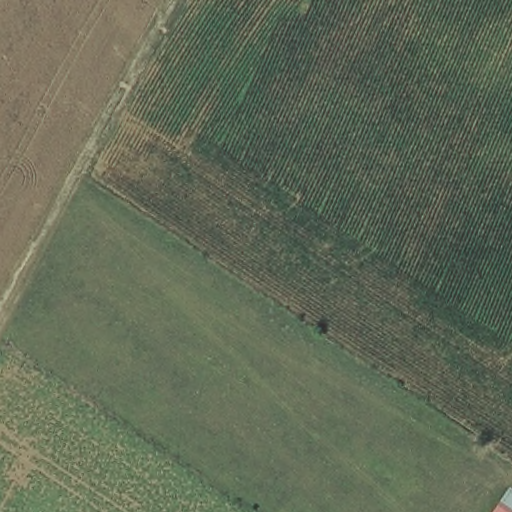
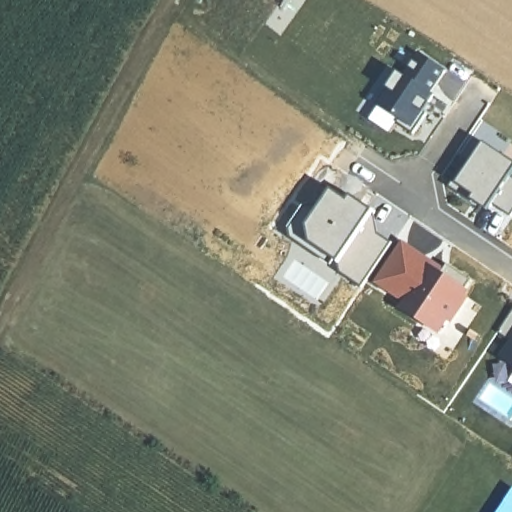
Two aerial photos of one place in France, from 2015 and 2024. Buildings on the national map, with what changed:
new [(397,69),(415,50),(448,69),(433,96),(435,98),(411,135),(396,124),(390,134),(367,119),(397,69)]
new [(512,161),(512,172),(510,177),(512,178),(512,212),(511,214),(491,202),(490,205),(474,197),(471,201),(451,187),(481,143),(512,161)]
new [(302,225),(332,186),(375,212),(371,218),(335,267),(292,234),(302,225)]
new [(371,218),(385,229),(382,232),(393,241),(360,287),(335,267),(371,218)]
new [(400,239),(428,257),(471,289),(450,324),(447,322),(438,335),(396,307),(399,302),(371,283),(400,239)]
new [(497,331),(512,310),(512,367),(496,357),(509,339),(497,331)]
new [(512,385),(506,381),(512,373),(512,385)]
unchanged [(512,512),(502,512),(512,497),(512,512)]

